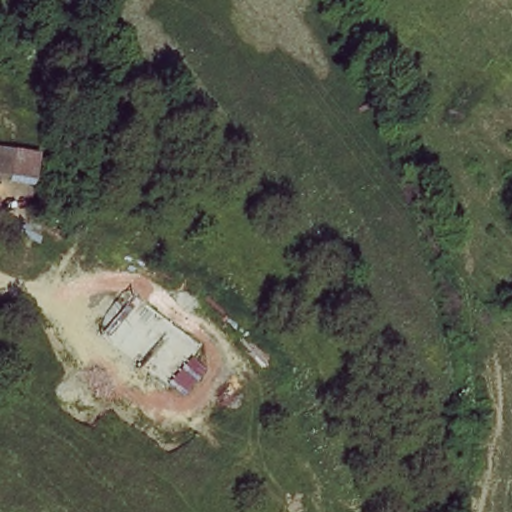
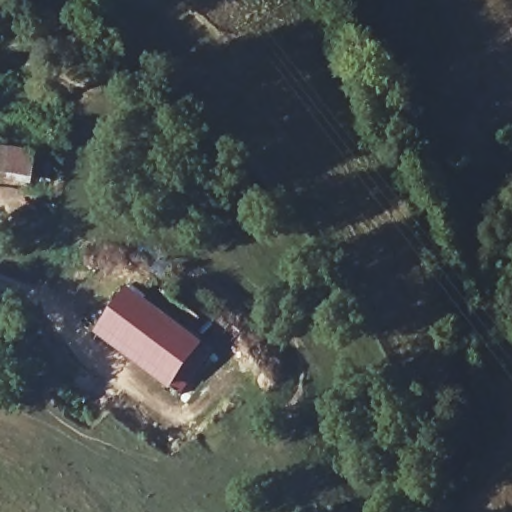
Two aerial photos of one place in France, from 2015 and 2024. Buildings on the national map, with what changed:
unchanged [(9,187),(0,186),(0,137),(52,145),(45,185),(10,180),(9,187)]
new [(130,290),(203,345),(171,390),(95,335),(130,290)]

